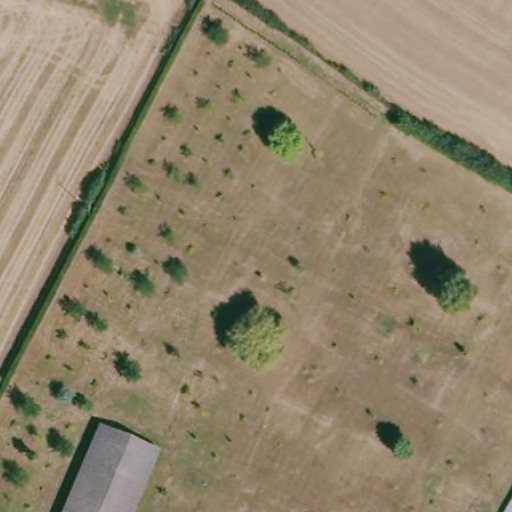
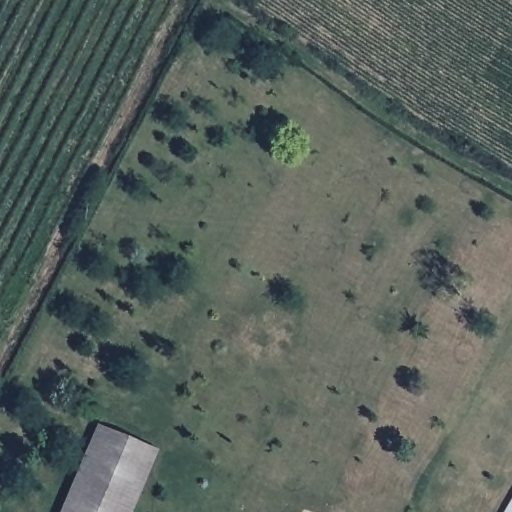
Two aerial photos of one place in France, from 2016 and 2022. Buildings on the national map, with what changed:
unchanged [(165,451),(138,512),(69,512),(107,426),(165,451)]
unchanged [(508,512),(512,506),(512,512),(508,512)]

